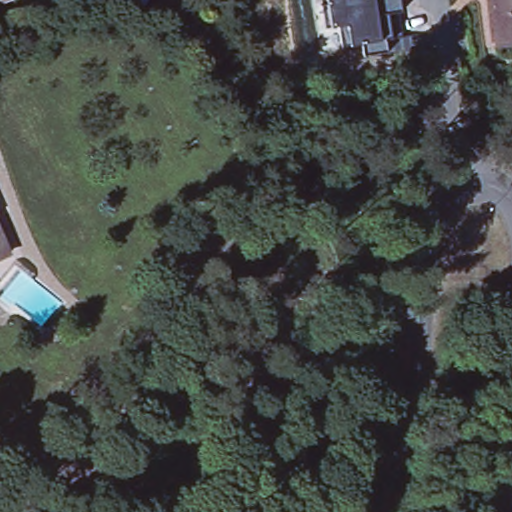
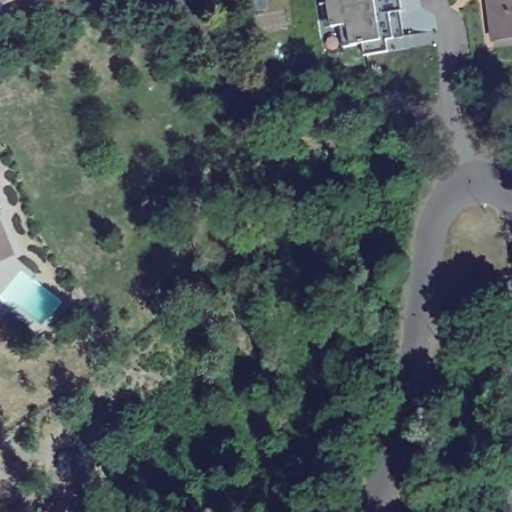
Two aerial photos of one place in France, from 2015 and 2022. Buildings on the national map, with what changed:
unchanged [(13,0),(4,4),(3,0),(13,0)]
unchanged [(378,14),(381,27),(394,26),(395,39),(387,40),(388,55),(360,55),(360,45),(352,45),(350,25),(330,28),(327,0),(401,0),(403,14),(378,14)]
unchanged [(512,0),(512,37),(495,40),(493,34),(488,0),(512,0)]
unchanged [(0,261),(0,226),(12,255),(0,261)]

